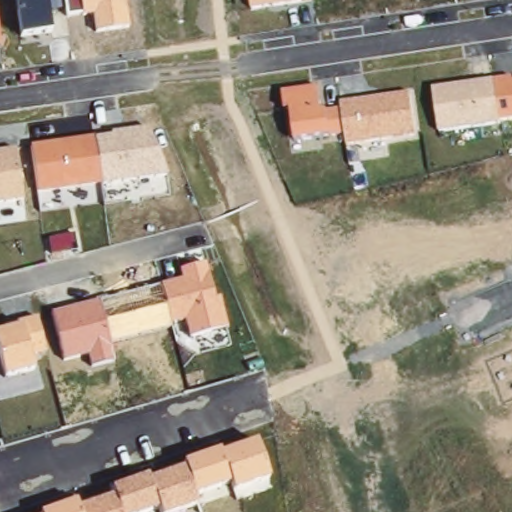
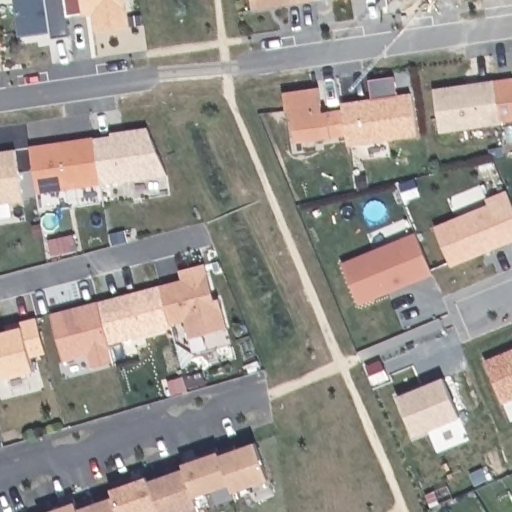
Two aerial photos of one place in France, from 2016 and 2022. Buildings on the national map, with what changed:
unchanged [(50,32),(20,37),(15,0),(46,0),(50,32)]
unchanged [(131,27),(95,32),(92,13),(67,16),(64,0),(126,0),(131,27)]
unchanged [(317,0),(252,10),(251,0),(317,0)]
unchanged [(512,78),(512,122),(439,133),(435,88),(512,78)]
unchanged [(416,138),(347,147),(345,135),(295,143),(291,111),(286,112),(283,93),(318,89),(323,111),(342,109),(342,104),(409,93),(416,138)]
unchanged [(170,176),(36,194),(30,146),(111,136),(111,133),(147,129),(170,176)]
unchanged [(0,204),(0,152),(15,150),(22,201),(0,204)]
new [(488,203),(486,197),(507,189),(512,201),(512,240),(452,265),(435,225),(488,203)]
new [(417,232),(433,273),(360,303),(342,263),(417,232)]
unchanged [(181,278),(178,270),(205,264),(213,299),(219,298),(227,330),(189,340),(182,322),(109,341),(113,363),(90,368),(87,356),(62,362),(51,313),(181,278)]
unchanged [(31,358),(34,372),(4,380),(0,365),(0,332),(15,328),(14,323),(38,317),(47,354),(31,358)]
new [(512,348),(512,398),(503,402),(486,359),(512,348)]
new [(444,376),(461,416),(415,435),(398,396),(444,376)]
unchanged [(232,493),(230,486),(194,498),(197,507),(182,512),(157,512),(157,511),(155,512),(46,512),(76,501),(80,509),(112,496),(110,490),(148,476),(150,479),(182,468),(181,464),(218,451),(220,454),(256,441),(270,480),(232,493)]

